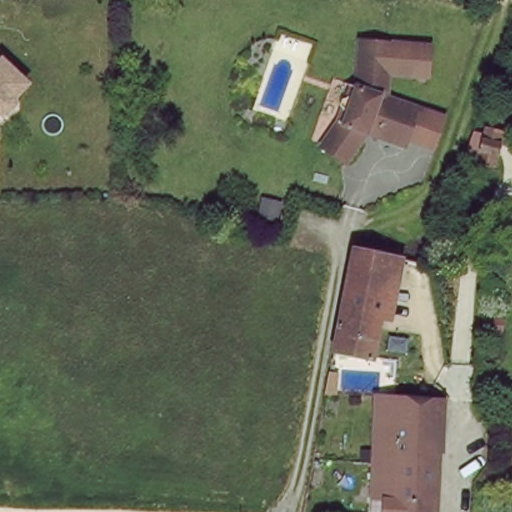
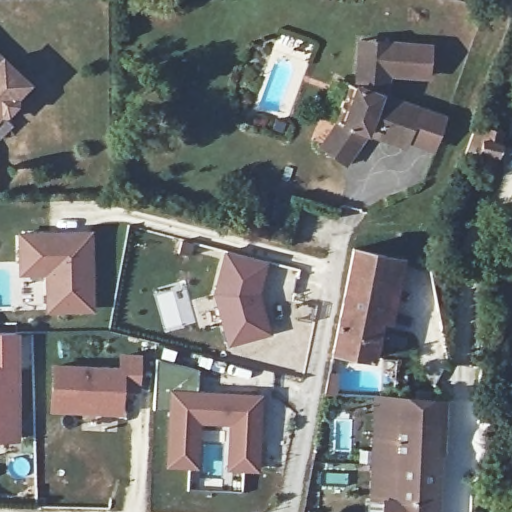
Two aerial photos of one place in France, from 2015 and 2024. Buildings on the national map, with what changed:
unchanged [(359,52),(359,40),(377,41),(392,41),(390,98),(424,112),(412,142),(375,128),(346,167),(319,143),(328,130),(358,85),(359,52)]
unchanged [(15,98),(7,107),(0,107),(0,50),(19,68),(28,77),(15,91),(15,98)]
unchanged [(477,162),(483,132),(501,136),(495,166),(477,162)]
new [(88,223),(90,298),(47,299),(45,261),(19,262),(18,224),(88,223)]
new [(222,242),(261,253),(252,285),(262,324),(223,334),(210,284),(222,242)]
unchanged [(402,259),(396,282),(384,279),(360,363),(326,353),(350,259),(352,249),(402,259)]
unchanged [(497,339),(497,320),(507,321),(507,339),(497,339)]
new [(20,442),(0,442),(0,332),(17,332),(20,442)]
new [(52,357),(117,360),(118,347),(135,348),(133,380),(117,378),(117,402),(50,399),(52,357)]
new [(258,471),(225,470),(227,423),(200,422),(197,468),(164,467),(167,408),(155,409),(157,359),(197,369),(196,391),(262,393),(258,471)]
unchanged [(375,495),(382,394),(452,398),(443,512),(391,512),(392,496),(375,495)]

